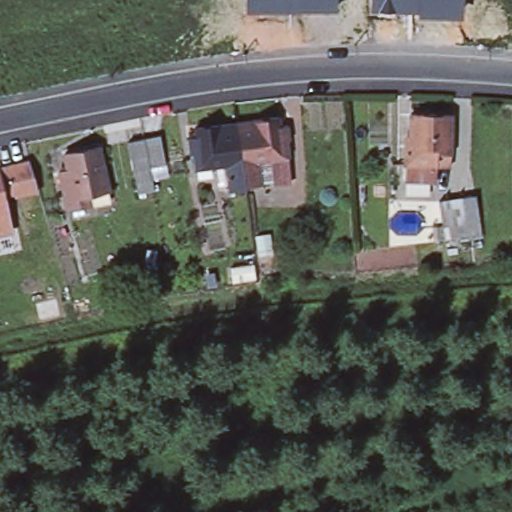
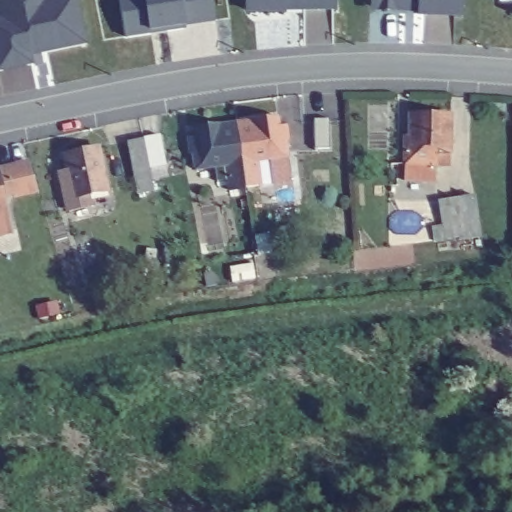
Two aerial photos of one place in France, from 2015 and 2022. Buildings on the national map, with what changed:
new [(32,56),(35,65),(0,71),(0,19),(0,0),(80,0),(88,45),(32,56)]
new [(185,26),(187,29),(125,39),(119,0),(212,0),(215,21),(185,26)]
unchanged [(245,11),(245,0),(336,0),(336,11),(245,11)]
unchanged [(416,16),(417,11),(371,11),(371,0),(461,0),(460,18),(416,16)]
unchanged [(277,179),(276,168),(264,170),(265,181),(250,183),(241,118),(257,116),(257,115),(282,111),(283,121),(291,120),(293,136),(290,136),(292,151),(295,177),(277,179)]
unchanged [(409,180),(409,165),(410,145),(413,145),(415,114),(455,115),(455,166),(440,166),(440,181),(409,180)]
unchanged [(219,161),(200,165),(197,149),(195,149),(193,133),(200,133),(198,123),(224,120),(225,121),(241,118),(250,183),(233,185),(232,175),(222,177),(219,161)]
unchanged [(127,141),(143,138),(159,135),(165,164),(148,167),(152,190),(137,193),(127,141)]
unchanged [(103,142),(112,186),(95,189),(97,199),(72,205),(63,166),(72,165),(68,150),(103,142)]
unchanged [(26,245),(0,251),(0,230),(0,165),(2,165),(34,158),(42,185),(18,190),(17,186),(8,188),(11,203),(17,226),(22,225),(26,245)]
unchanged [(460,197),(465,229),(443,233),(444,239),(433,241),(432,226),(442,225),(437,201),(460,197)]
unchanged [(257,255),(254,236),(269,234),(272,253),(257,255)]
unchanged [(255,279),(231,283),(229,267),(253,263),(255,279)]
unchanged [(55,299),(60,316),(39,321),(35,304),(55,299)]

